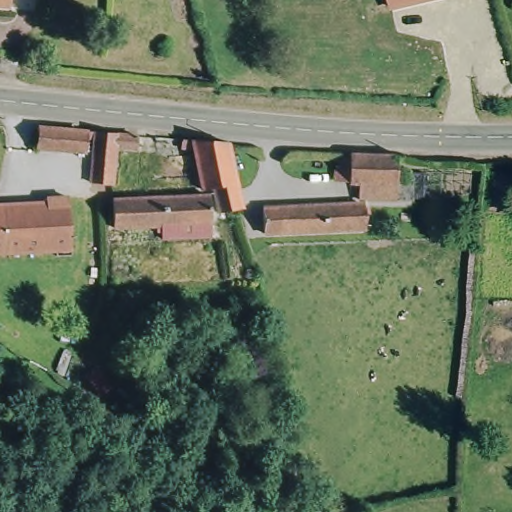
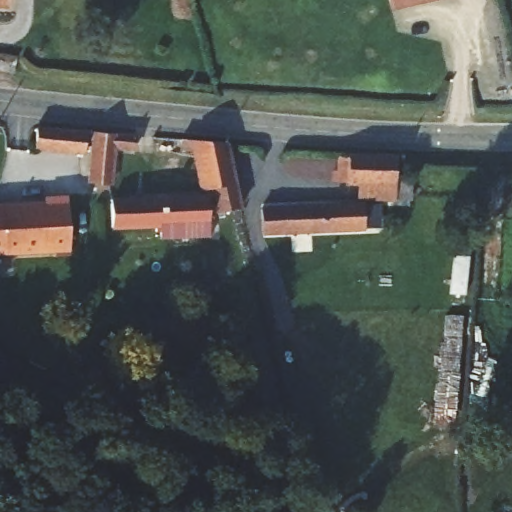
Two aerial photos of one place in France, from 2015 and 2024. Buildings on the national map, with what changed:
unchanged [(20,1),(0,1),(0,0),(20,0),(20,1)]
unchanged [(393,13),(390,0),(445,0),(393,13)]
unchanged [(17,58),(15,72),(0,68),(0,54),(17,58)]
unchanged [(46,127),(95,132),(93,149),(45,148),(46,127)]
unchanged [(99,149),(101,132),(143,136),(141,151),(121,149),(120,173),(117,173),(116,185),(94,182),(99,149)]
unchanged [(188,135),(232,142),(234,148),(238,167),(242,186),(245,205),(222,205),(223,187),(209,187),(200,146),(188,146),(188,135)]
unchanged [(349,157),(358,157),(358,150),(375,152),(405,155),(403,196),(366,195),(367,180),(348,179),(349,157)]
unchanged [(214,194),(215,205),(216,205),(217,235),(168,238),(168,232),(159,232),(159,225),(118,224),(117,195),(214,194)]
unchanged [(41,208),(41,202),(64,200),(67,252),(0,257),(0,211),(41,208)]
unchanged [(372,202),(372,232),(270,233),(270,203),(372,202)]

